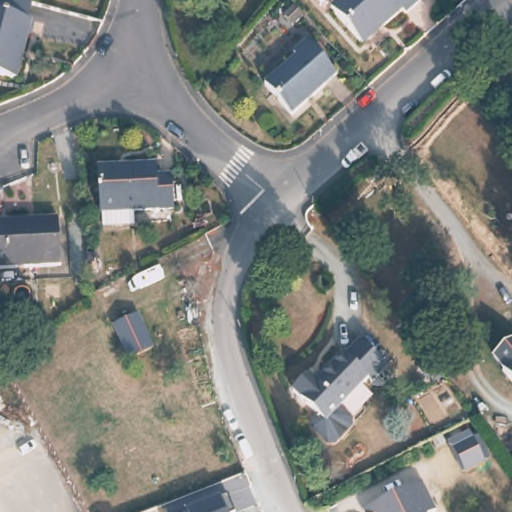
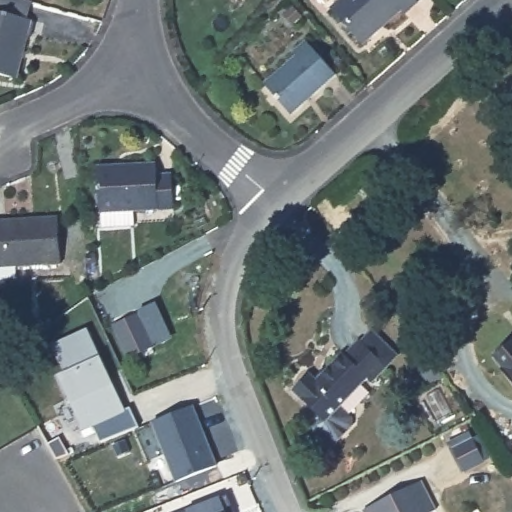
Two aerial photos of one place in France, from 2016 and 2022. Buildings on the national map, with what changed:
unchanged [(0,73),(0,0),(36,0),(34,15),(39,16),(24,78),(0,73)]
unchanged [(415,3),(396,20),(392,16),(356,48),(327,15),(343,0),(411,0),(415,3)]
unchanged [(291,36),(281,26),(292,15),(302,26),(291,36)]
unchanged [(337,72),(290,115),(263,85),(296,55),(291,51),(306,38),(337,72)]
unchanged [(174,205),(135,206),(134,221),(105,222),(104,207),(100,207),(99,161),(159,159),(160,169),(173,170),(174,205)]
unchanged [(60,259),(0,261),(0,213),(59,211),(60,259)]
unchanged [(5,342),(0,342),(0,318),(2,318),(5,342)]
unchanged [(150,352),(126,363),(112,330),(136,320),(150,352)]
new [(94,327),(129,407),(134,405),(142,425),(104,439),(96,423),(87,426),(64,373),(72,369),(60,341),(94,327)]
unchanged [(387,366),(371,382),(367,378),(340,406),(351,416),(349,426),(334,441),(327,440),(312,426),(313,419),(319,413),(293,389),(310,370),(316,375),(343,349),(346,350),(359,338),(387,366)]
unchanged [(507,373),(508,368),(496,354),(508,343),(512,347),(512,379),(507,373)]
unchanged [(440,385),(425,368),(436,360),(451,378),(440,385)]
new [(196,405),(219,465),(178,480),(156,420),(196,405)]
unchanged [(493,450),(480,455),(471,437),(483,433),(493,450)]
unchanged [(431,512),(365,512),(364,510),(424,481),(436,508),(431,512)]
unchanged [(220,512),(187,512),(218,499),(220,512)]

